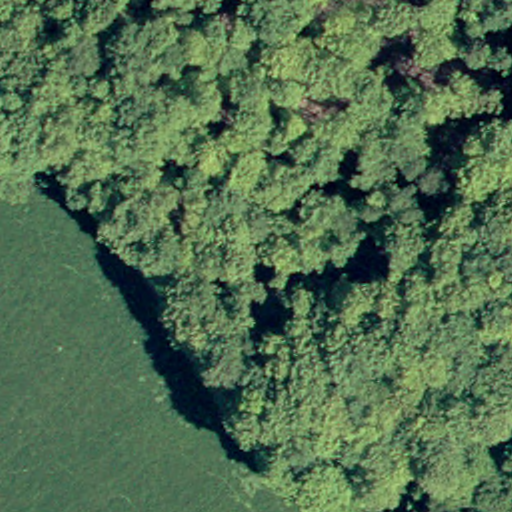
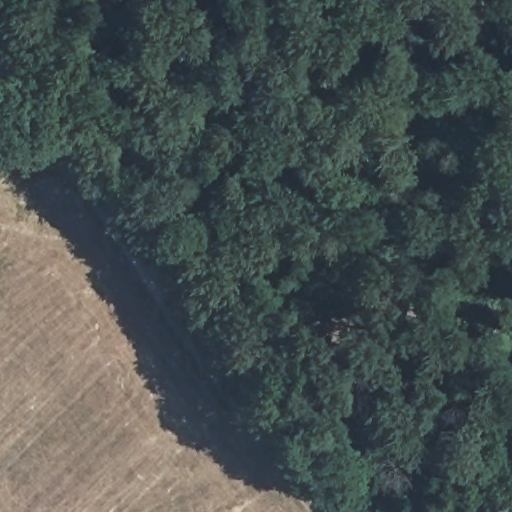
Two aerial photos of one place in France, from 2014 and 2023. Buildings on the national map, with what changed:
[]

